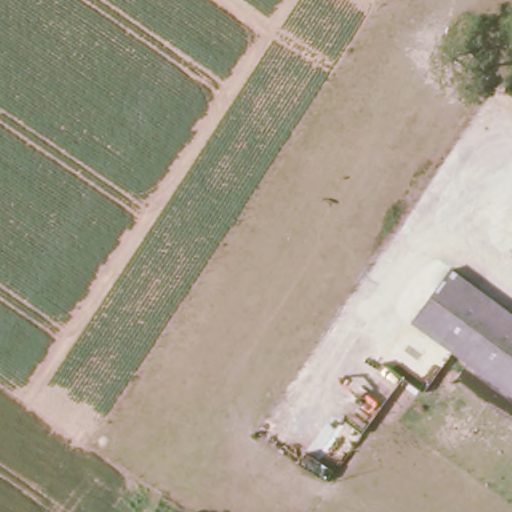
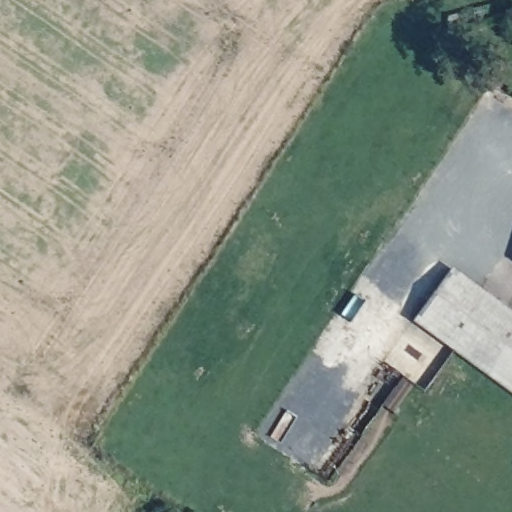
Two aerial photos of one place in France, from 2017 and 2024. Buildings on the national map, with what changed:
unchanged [(412,316),(449,263),(512,308),(512,389),(412,316)]

